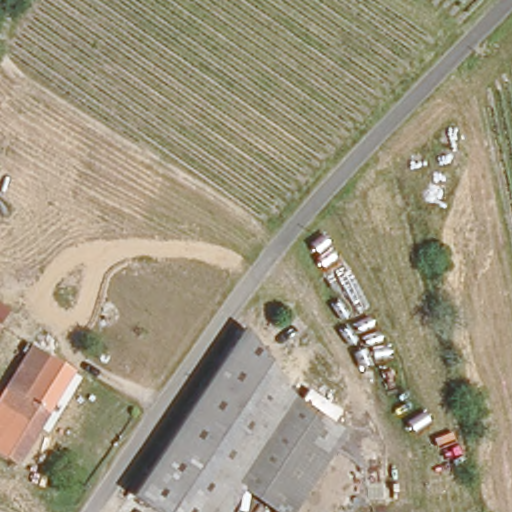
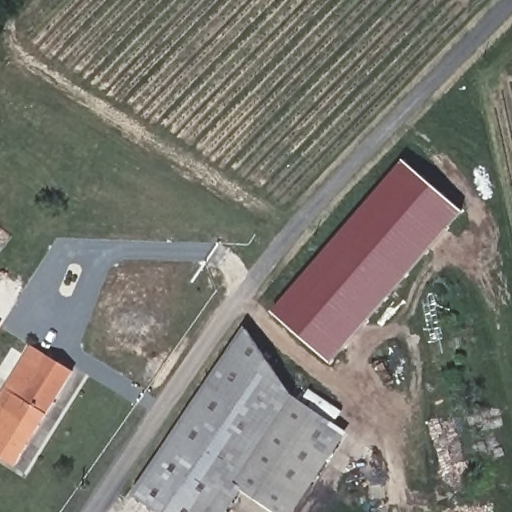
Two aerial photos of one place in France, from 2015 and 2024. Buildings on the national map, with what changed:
new [(272,313),(403,161),(461,211),(330,363),(301,338),(272,313)]
unchanged [(150,469),(245,333),(248,328),(279,375),(295,398),(303,403),(346,431),(294,512),(274,512),(243,487),(228,512),(160,512),(133,494),(150,469)]
unchanged [(75,374),(15,468),(0,458),(0,398),(32,346),(75,374)]

